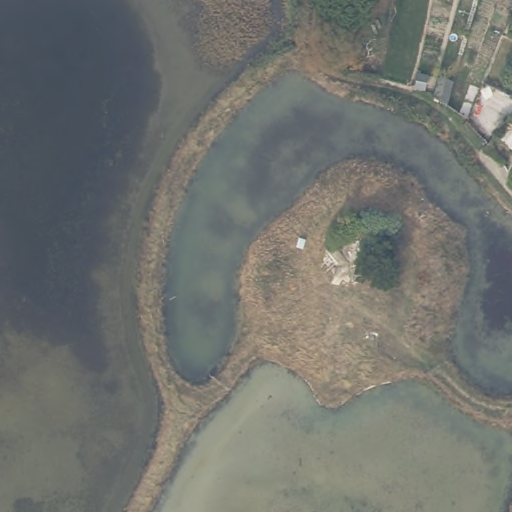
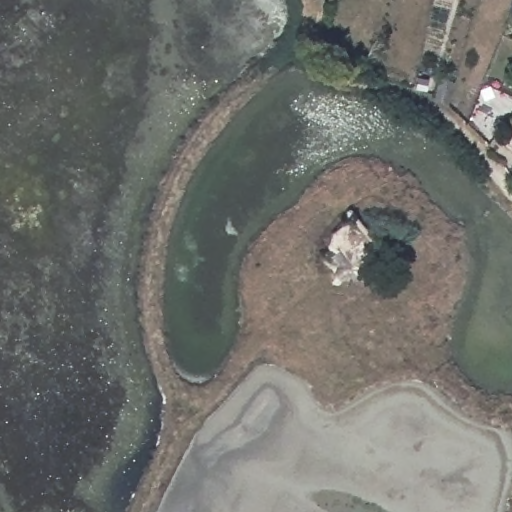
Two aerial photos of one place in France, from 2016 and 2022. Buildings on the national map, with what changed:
unchanged [(450,81),(442,108),(427,100),(434,76),(450,81)]
unchanged [(512,126),(512,151),(511,151),(494,139),(505,121),(510,123),(512,126)]
unchanged [(342,277),(320,248),(347,223),(376,245),(342,277)]

